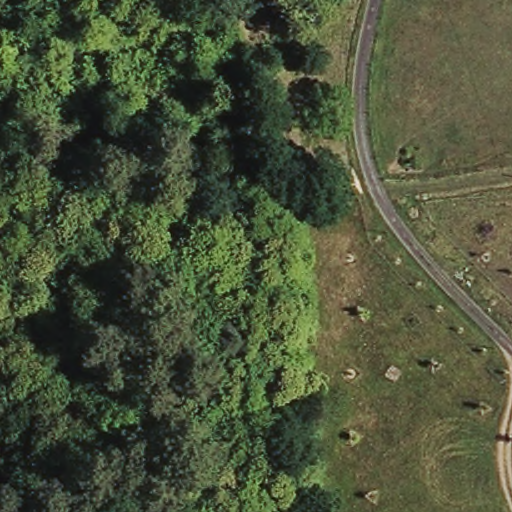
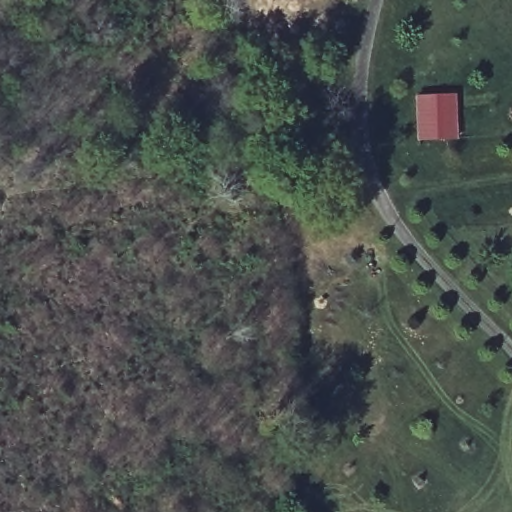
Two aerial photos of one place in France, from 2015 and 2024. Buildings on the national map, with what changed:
new [(413,97),(455,96),(456,141),(416,142),(413,97)]

